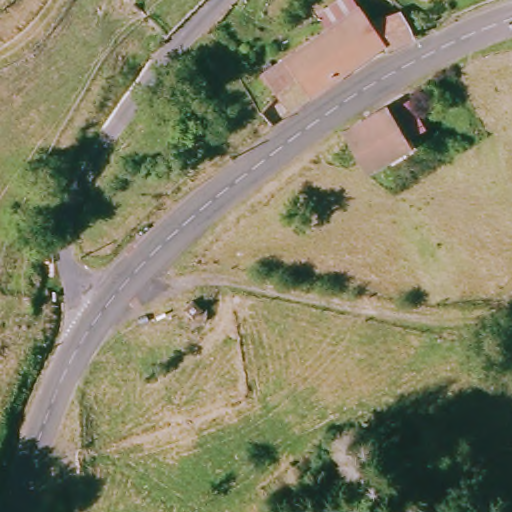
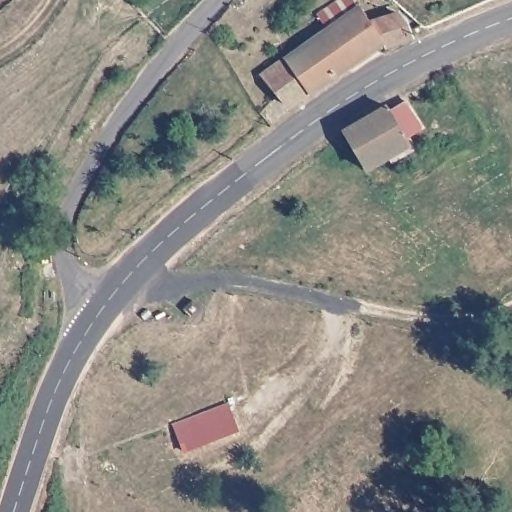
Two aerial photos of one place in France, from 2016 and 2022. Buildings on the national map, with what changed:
unchanged [(379,35),(287,102),(275,87),(262,72),(326,24),(314,10),(327,0),(351,0),(355,5),(366,18),(394,9),(404,20),(406,30),(383,39),(379,35)]
unchanged [(345,134),(389,108),(392,116),(410,106),(421,126),(405,138),(408,145),(365,166),(347,136),(345,134)]
new [(202,445),(192,417),(229,405),(240,431),(202,445)]

